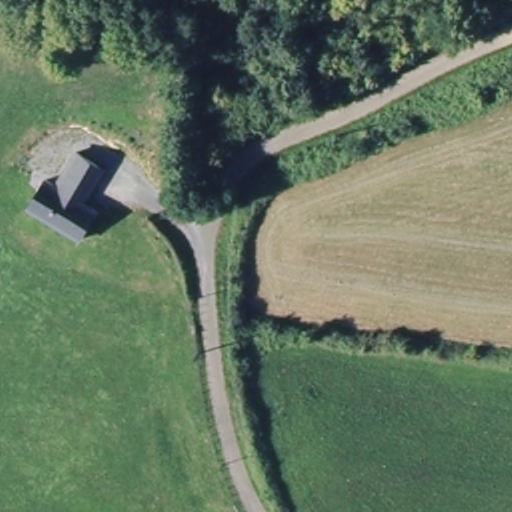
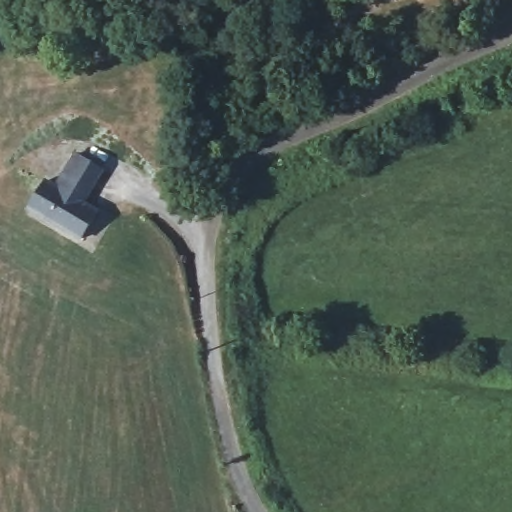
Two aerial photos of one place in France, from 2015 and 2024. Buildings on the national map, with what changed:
unchanged [(90,238),(30,207),(47,177),(61,185),(80,149),(109,164),(90,199),(107,210),(90,238)]

